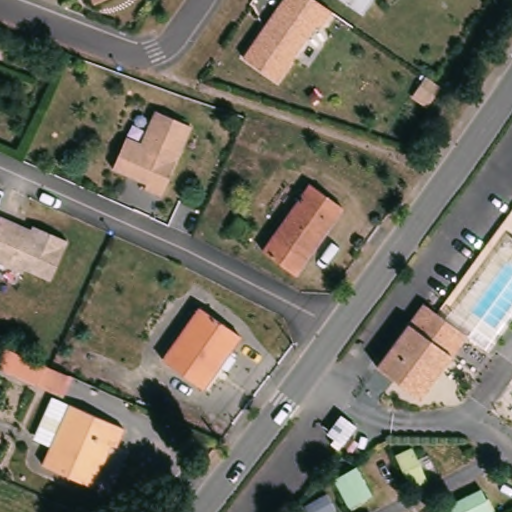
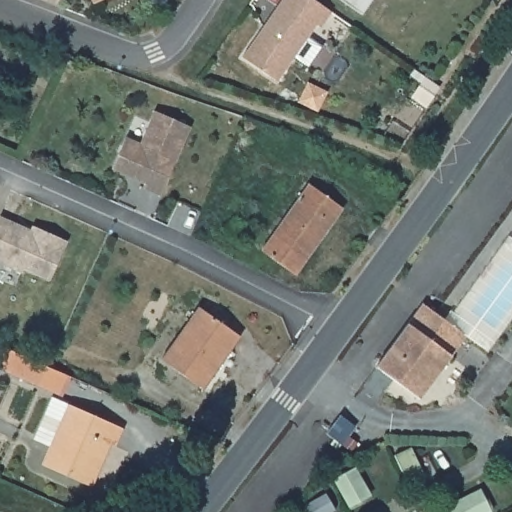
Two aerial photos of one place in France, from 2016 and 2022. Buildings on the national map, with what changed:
unchanged [(93,0),(103,0),(94,4),(93,0)]
unchanged [(325,26),(317,21),(280,80),(242,55),(280,0),(322,0),(333,7),(325,26)]
unchanged [(348,0),(371,0),(364,10),(348,0)]
unchanged [(186,109),(157,180),(141,173),(143,169),(109,154),(122,122),(136,128),(149,95),(186,109)]
unchanged [(338,207),(292,276),(258,253),(305,184),(338,207)]
unchanged [(39,219),(68,231),(52,271),(22,258),(19,262),(0,255),(0,208),(37,223),(39,219)]
unchanged [(469,332),(423,397),(377,366),(424,299),(469,332)]
unchanged [(238,336),(201,390),(159,361),(196,307),(238,336)]
unchanged [(36,385),(36,386),(0,371),(0,359),(4,349),(44,366),(43,368),(66,377),(59,394),(36,385)]
unchanged [(50,448),(33,441),(51,398),(122,427),(115,445),(110,443),(91,487),(42,467),(50,448)]
unchanged [(343,448),(336,443),(340,437),(333,432),(346,413),(361,423),(343,448)]

